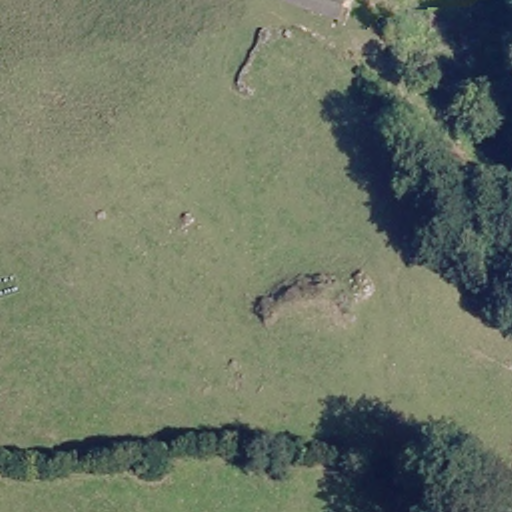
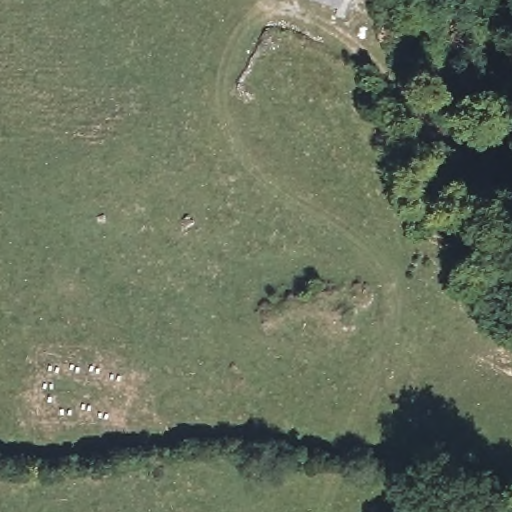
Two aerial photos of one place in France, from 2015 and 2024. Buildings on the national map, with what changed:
unchanged [(340,5),(324,0),(341,0),(340,5)]

